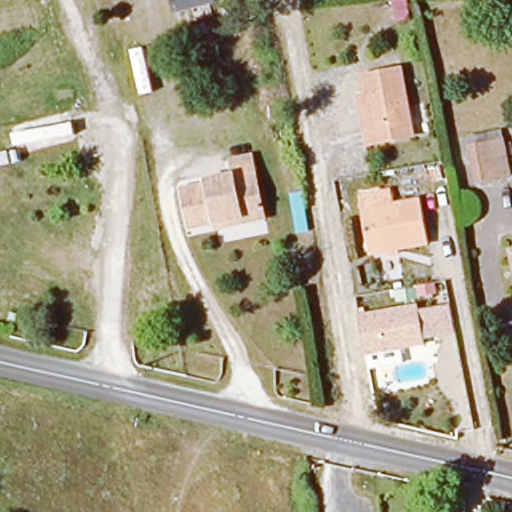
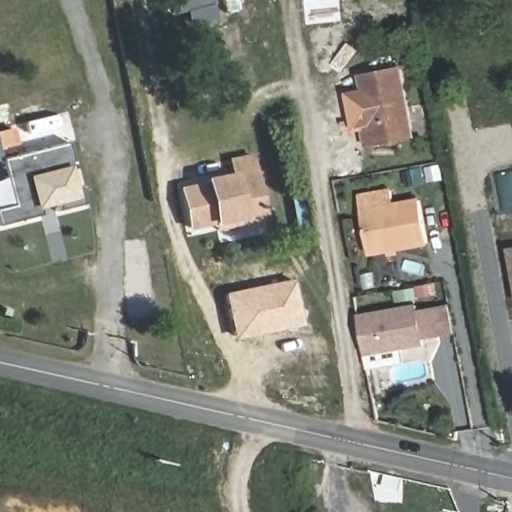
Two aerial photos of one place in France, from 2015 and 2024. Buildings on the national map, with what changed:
unchanged [(381,9),(410,1),(416,26),(385,34),(381,9)]
unchanged [(366,96),(363,79),(378,75),(400,71),(413,137),(392,141),(377,145),(368,146),(365,129),(359,97),(366,96)]
unchanged [(470,147),(503,141),(510,176),(476,182),(470,147)]
new [(9,207),(0,171),(0,160),(66,143),(84,205),(55,212),(54,205),(39,209),(40,215),(0,226),(0,209),(9,207)]
unchanged [(207,180),(232,175),(232,179),(256,174),(266,219),(243,224),(241,218),(216,224),(191,229),(182,190),(207,184),(207,180)]
unchanged [(395,205),(405,204),(421,201),(429,244),(415,246),(399,250),(370,255),(359,197),(387,192),(392,191),(395,205)]
unchanged [(341,214),(339,203),(349,200),(351,211),(341,214)]
unchanged [(512,256),(511,251),(512,251),(512,256)]
new [(234,340),(223,295),(295,280),(304,325),(234,340)]
unchanged [(423,340),(425,345),(365,356),(358,314),(417,303),(418,310),(450,305),(455,334),(423,340)]

